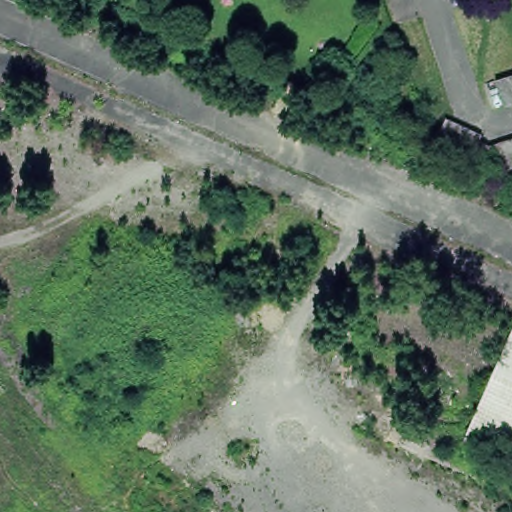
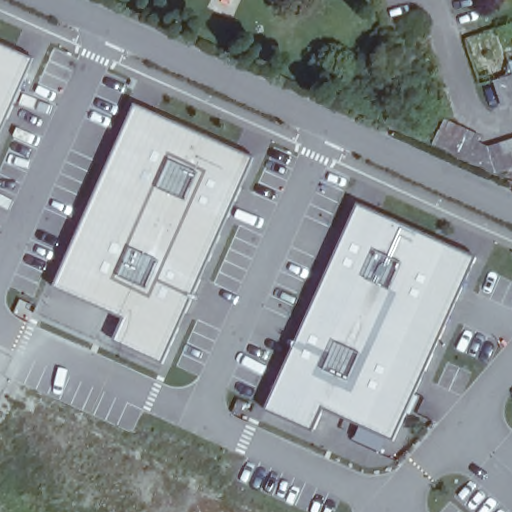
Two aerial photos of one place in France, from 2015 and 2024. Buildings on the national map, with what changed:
new [(0,123),(0,47),(27,60),(0,123)]
unchanged [(512,80),(512,108),(503,111),(495,86),(507,82),(512,80)]
new [(250,160),(161,366),(112,342),(120,318),(52,287),(130,107),(250,160)]
unchanged [(509,144),(512,143),(512,171),(504,174),(492,178),(465,166),(452,160),(441,155),(428,149),(439,125),(452,130),(464,136),(476,141),(472,147),(484,152),(496,148),(509,144)]
new [(395,440),(325,409),(316,431),(265,409),(357,204),(478,257),(395,440)]
demolished [(467,441),(512,345),(512,462),(467,441)]

